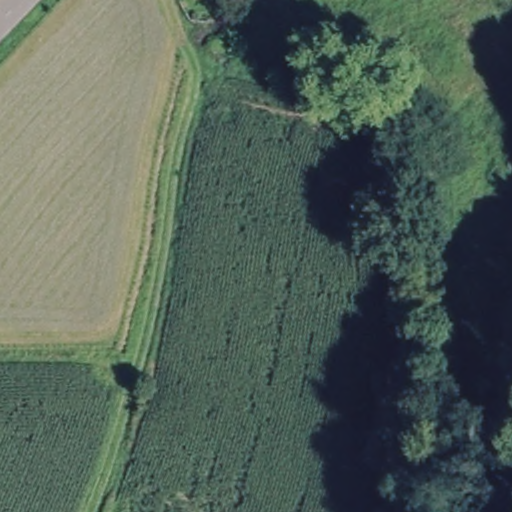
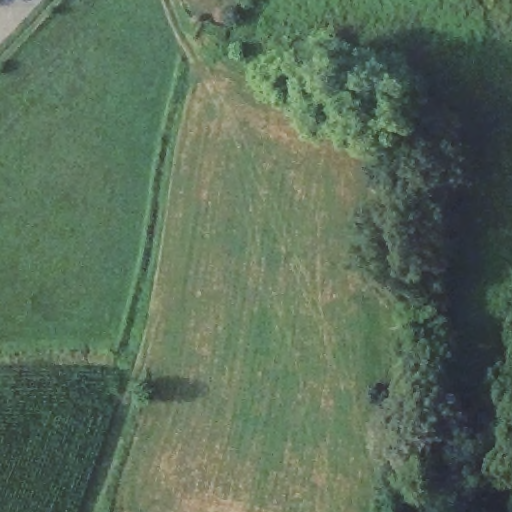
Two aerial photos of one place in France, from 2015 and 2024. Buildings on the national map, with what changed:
unchanged [(197,0),(196,1),(195,0),(197,0)]

